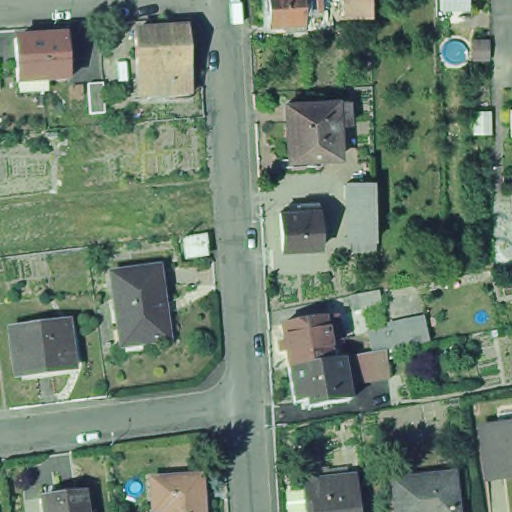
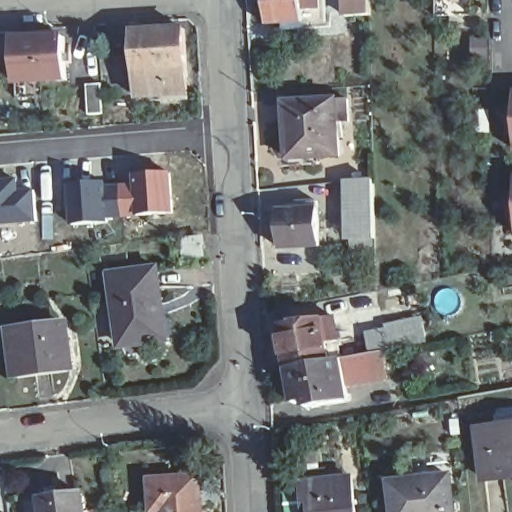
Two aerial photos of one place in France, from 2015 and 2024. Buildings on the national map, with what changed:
unchanged [(285,23),(266,24),(266,0),(301,0),(302,23),(302,30),(285,31),(285,23)]
unchanged [(340,2),(339,0),(365,0),(365,1),(340,2)]
unchanged [(429,14),(429,0),(464,0),(465,12),(429,14)]
unchanged [(183,32),(188,97),(138,100),(133,35),(183,32)]
unchanged [(13,42),(39,40),(50,40),(64,39),(65,47),(71,47),(72,66),(66,66),(66,82),(41,84),(15,85),(13,42)]
unchanged [(100,80),(93,81),(92,69),(100,67),(100,80)]
unchanged [(88,117),(85,87),(100,86),(102,116),(88,117)]
unchanged [(341,97),(343,118),(330,119),(333,154),(282,157),(280,101),(341,97)]
new [(132,182),(131,175),(171,172),(173,213),(68,226),(64,184),(132,182)]
new [(21,189),(35,188),(37,222),(0,225),(0,178),(20,177),(21,189)]
unchanged [(352,205),(352,190),(352,187),(378,187),(378,205),(378,231),(378,244),(353,245),(352,231),(352,205)]
unchanged [(280,250),(278,214),(296,212),(296,204),(317,202),(317,211),(320,247),(280,250)]
unchanged [(201,240),(202,257),(185,260),(182,241),(201,240)]
unchanged [(161,342),(159,342),(133,346),(132,344),(112,347),(104,277),(153,270),(157,306),(161,342)]
unchanged [(375,295),(376,295),(378,308),(353,313),(350,299),(375,295)]
unchanged [(277,346),(282,346),(280,327),(321,319),(332,317),(337,343),(325,345),(328,362),(287,370),(283,352),(278,353),(277,346)]
unchanged [(312,411),(310,402),(293,406),(287,370),(328,362),(338,361),(373,355),(369,332),(425,318),(430,343),(386,353),(391,383),(349,391),(350,398),(346,399),(347,405),(335,407),(312,411)]
unchanged [(66,326),(71,368),(15,376),(10,333),(66,326)]
unchanged [(512,423),(512,472),(482,476),(477,427),(512,423)]
unchanged [(448,473),(453,512),(393,512),(390,478),(448,473)]
unchanged [(356,476),(359,512),(307,512),(305,482),(356,476)]
unchanged [(155,480),(205,477),(206,512),(156,512),(155,480)]
unchanged [(87,512),(35,512),(32,495),(73,490),(75,507),(86,505),(87,512)]

